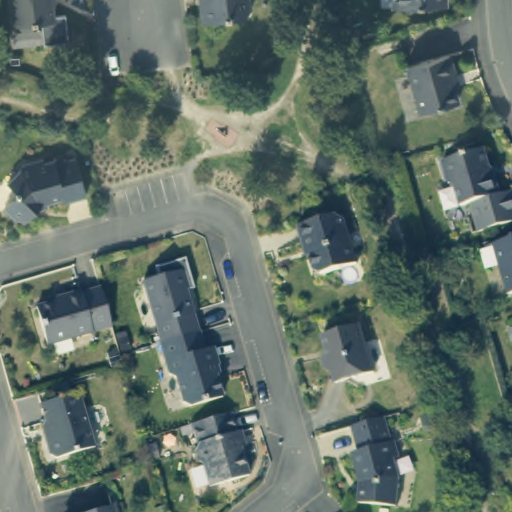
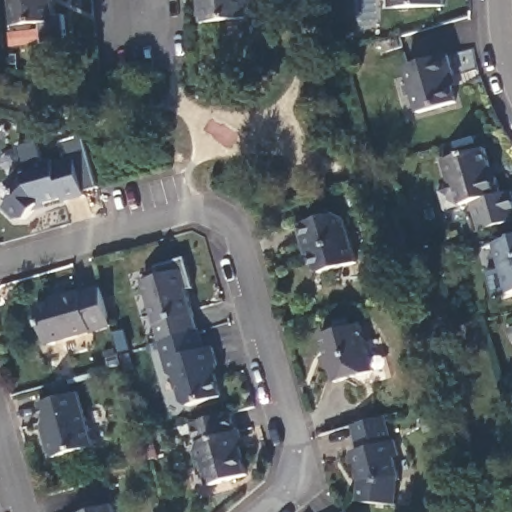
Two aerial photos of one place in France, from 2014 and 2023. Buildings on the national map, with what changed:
unchanged [(38,27),(31,32),(19,32),(14,25),(10,0),(51,0),(54,24),(38,27)]
unchanged [(247,14),(242,17),(242,21),(199,25),(197,8),(202,7),(201,0),(245,0),(246,2),(247,14)]
unchanged [(396,8),(395,0),(445,0),(445,4),(396,8)]
unchanged [(448,58),(453,78),(448,80),(454,102),(417,112),(405,69),(448,58)]
unchanged [(464,209),(454,182),(451,182),(443,160),(483,149),(495,180),(496,180),(502,196),(512,195),(512,222),(477,232),(470,207),(464,209)]
unchanged [(86,191),(69,198),(66,194),(45,201),(30,218),(18,219),(5,208),(15,193),(14,187),(8,180),(19,172),(23,162),(44,156),(45,161),(54,159),(55,162),(75,155),(86,191)]
unchanged [(337,215),(344,220),(357,264),(322,274),(315,271),(307,242),(303,239),(299,225),(337,215)]
unchanged [(512,294),(505,295),(489,244),(512,237),(512,294)]
unchanged [(142,283),(180,272),(185,276),(190,293),(188,296),(199,334),(159,345),(142,283)]
unchanged [(37,309),(54,304),(53,300),(63,297),(84,290),(85,293),(100,290),(111,329),(45,347),(37,309)]
unchanged [(319,356),(327,354),(321,333),(361,321),(373,369),(344,376),(332,372),(323,368),(319,356)]
unchanged [(204,353),(211,351),(217,368),(213,369),(221,399),(188,409),(181,407),(174,380),(169,378),(159,345),(199,334),(204,353)]
unchanged [(93,451),(57,460),(53,459),(50,454),(48,444),(50,437),(40,403),(77,391),(93,451)]
unchanged [(242,430),(249,448),(242,450),(250,478),(214,488),(205,466),(201,466),(201,457),(197,450),(200,448),(197,434),(187,436),(185,431),(232,417),(237,432),(242,430)]
unchanged [(393,444),(399,441),(398,452),(402,459),(398,460),(404,480),(401,484),(396,486),(394,504),(365,501),(364,469),(360,453),(362,447),(356,428),(386,420),(393,444)]
unchanged [(113,512),(92,512),(111,507),(113,512)]

